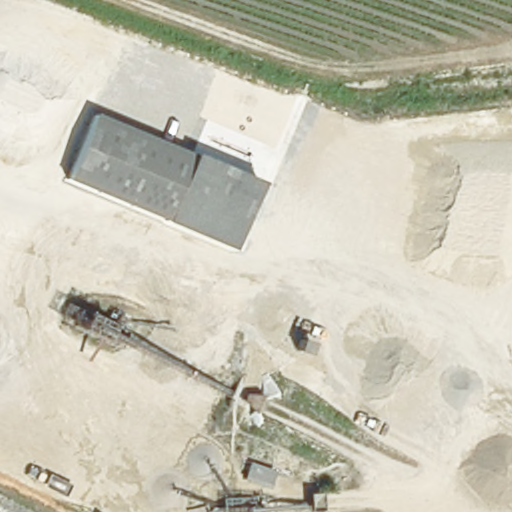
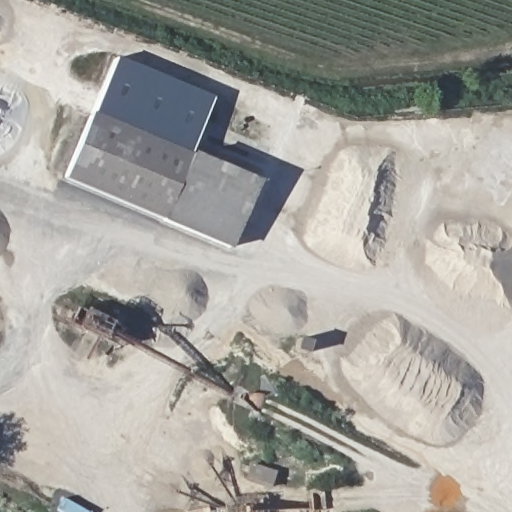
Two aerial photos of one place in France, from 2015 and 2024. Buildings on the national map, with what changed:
new [(95,119),(116,58),(212,96),(189,154),(95,119)]
unchanged [(230,255),(67,181),(95,119),(260,181),(230,255)]
unchanged [(244,481),(253,460),(278,470),(269,491),(244,481)]

